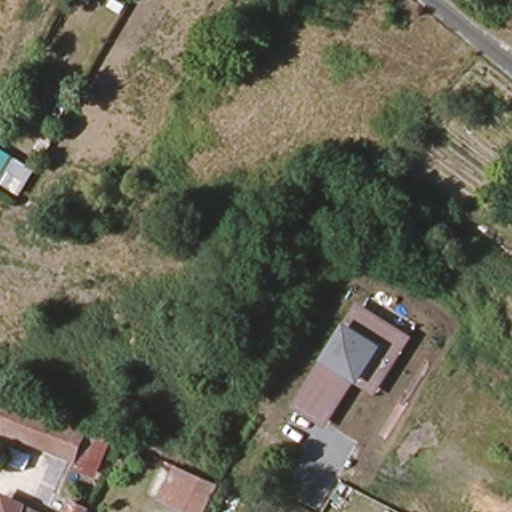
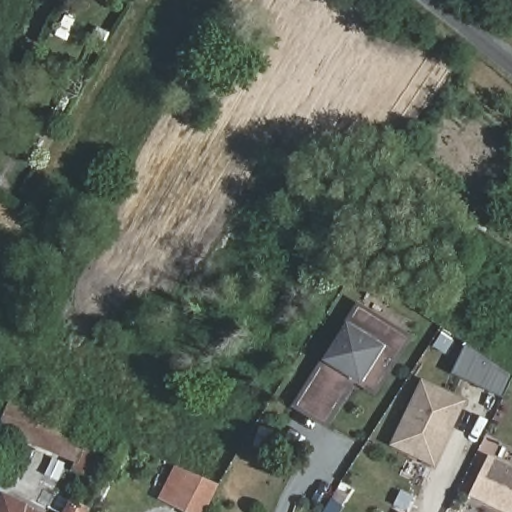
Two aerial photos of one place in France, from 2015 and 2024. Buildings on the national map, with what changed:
unchanged [(413,336),(375,395),(356,383),(328,428),(290,405),(359,303),(413,336)]
new [(512,373),(512,379),(504,396),(454,372),(468,344),(512,373)]
new [(435,467),(390,446),(422,377),(467,399),(435,467)]
unchanged [(11,405),(2,428),(0,427),(0,401),(11,405)]
unchanged [(110,445),(95,479),(83,473),(90,456),(83,453),(78,464),(6,435),(17,408),(110,445)]
unchanged [(277,429),(273,438),(253,428),(257,420),(277,429)]
new [(488,456),(512,467),(512,512),(502,512),(470,496),(488,456)]
unchanged [(180,512),(171,507),(187,474),(223,491),(220,498),(212,512),(180,512)]
unchanged [(0,512),(0,509),(5,499),(31,512),(0,512)]
unchanged [(86,510),(85,512),(65,512),(71,501),(86,510)]

